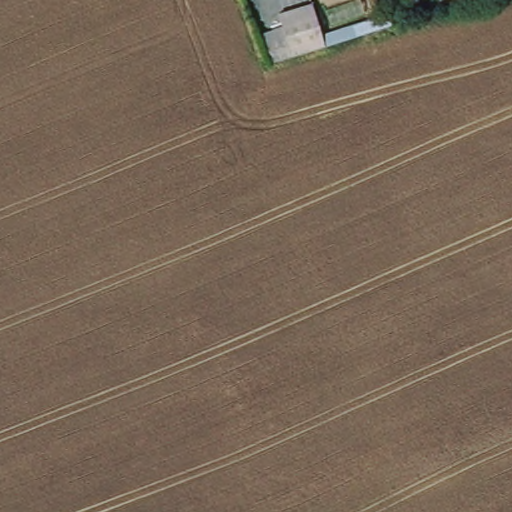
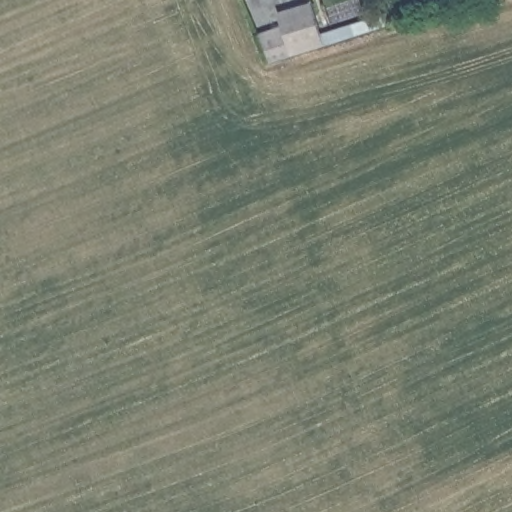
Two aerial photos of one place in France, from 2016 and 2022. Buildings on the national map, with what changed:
unchanged [(277,32),(272,19),(304,6),(323,53),(265,73),(252,41),(277,32)]

